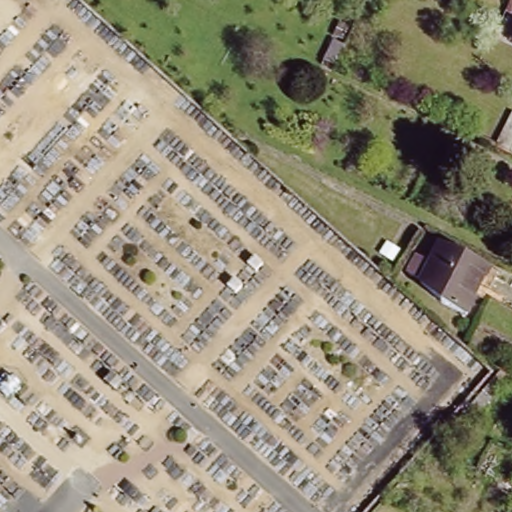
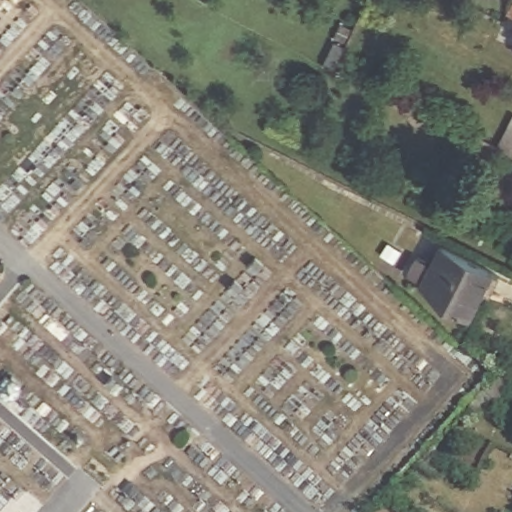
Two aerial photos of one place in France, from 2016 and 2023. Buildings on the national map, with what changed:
unchanged [(512,15),(507,12),(512,4),(512,15)]
unchanged [(512,115),(512,154),(496,146),(512,115)]
unchanged [(493,267),(481,293),(474,290),(464,311),(440,300),(420,276),(422,273),(410,266),(418,249),(431,255),(438,240),(493,267)]
unchanged [(497,378),(501,373),(512,379),(512,384),(496,402),(485,392),(485,391),(497,378)]

